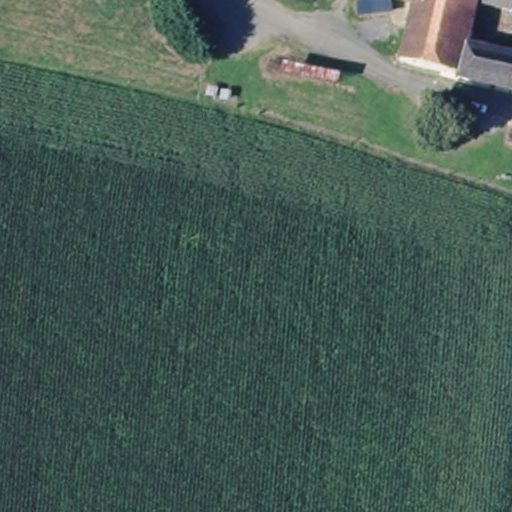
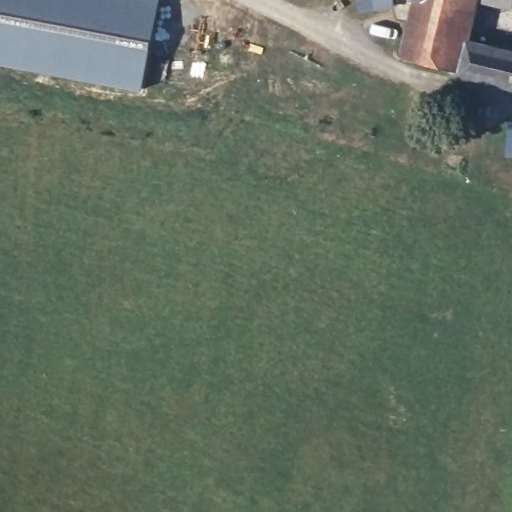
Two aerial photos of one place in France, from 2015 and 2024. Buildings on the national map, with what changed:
new [(142,92),(0,64),(0,0),(160,0),(142,92)]
unchanged [(358,2),(380,0),(391,0),(392,16),(359,19),(358,2)]
new [(511,11),(477,2),(469,40),(512,49),(512,90),(456,77),(457,72),(398,55),(412,0),(512,0),(512,9),(511,11)]
demolished [(416,0),(481,0),(480,2),(468,45),(512,58),(512,95),(456,76),(457,72),(401,54),(416,0)]

